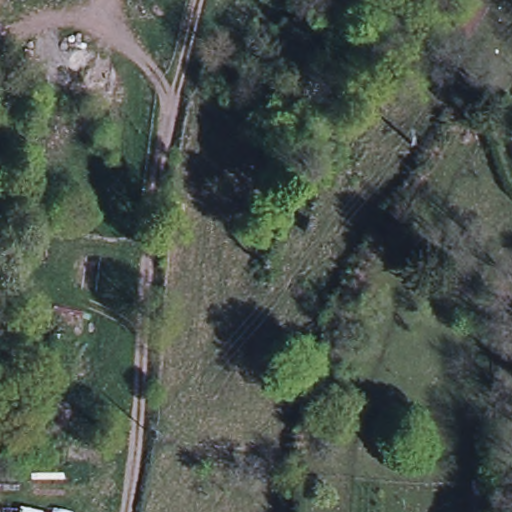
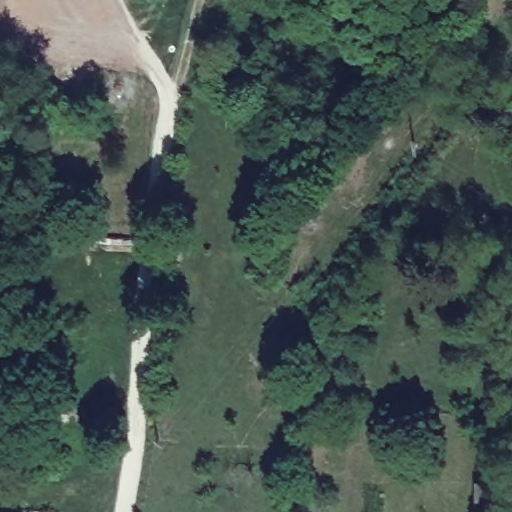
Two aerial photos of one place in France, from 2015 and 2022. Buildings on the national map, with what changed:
unchanged [(487,11),(469,38),(456,30),(474,3),(487,11)]
unchanged [(100,300),(97,276),(100,260),(123,260),(120,280),(123,299),(100,300)]
unchanged [(493,512),(475,512),(476,483),(493,483),(493,512)]

